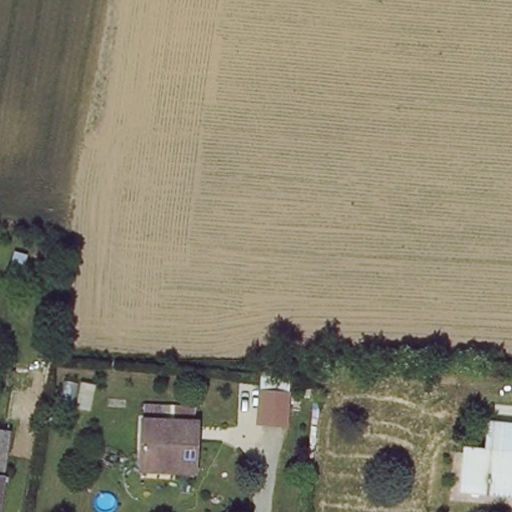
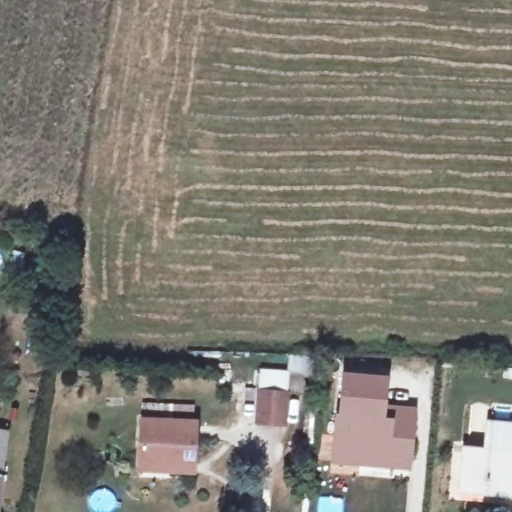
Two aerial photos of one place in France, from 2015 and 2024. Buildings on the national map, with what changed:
new [(254,424),(258,370),(289,371),(289,360),(313,361),(311,386),(288,385),(284,426),(254,424)]
new [(409,470),(329,462),(334,412),(336,412),(341,370),(387,375),(384,404),(414,407),(409,470)]
unchanged [(512,422),(512,450),(482,449),(483,423),(512,422)]
unchanged [(138,464),(139,424),(196,426),(194,473),(173,472),(138,471),(138,464)]
unchanged [(0,437),(8,438),(0,496),(0,437)]
unchanged [(464,448),(482,449),(512,450),(512,498),(490,498),(486,490),(462,489),(464,448)]

